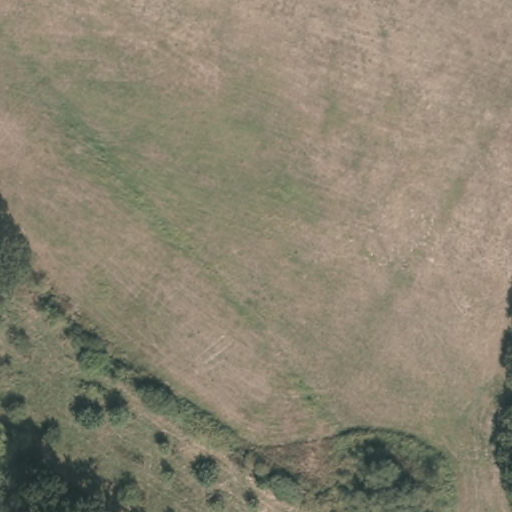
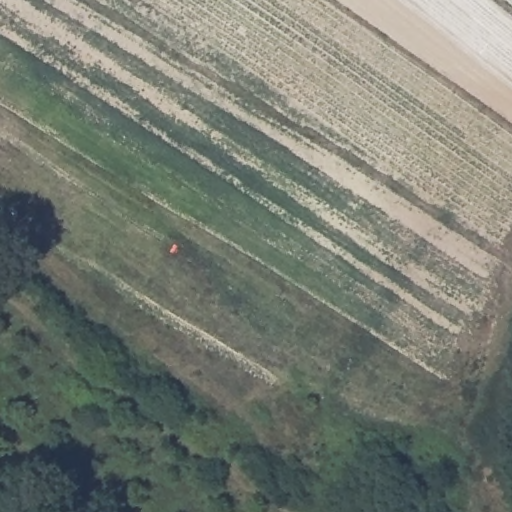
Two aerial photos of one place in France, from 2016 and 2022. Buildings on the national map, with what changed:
[]

